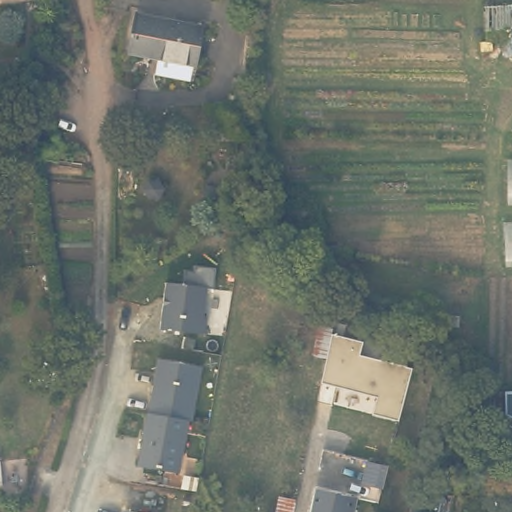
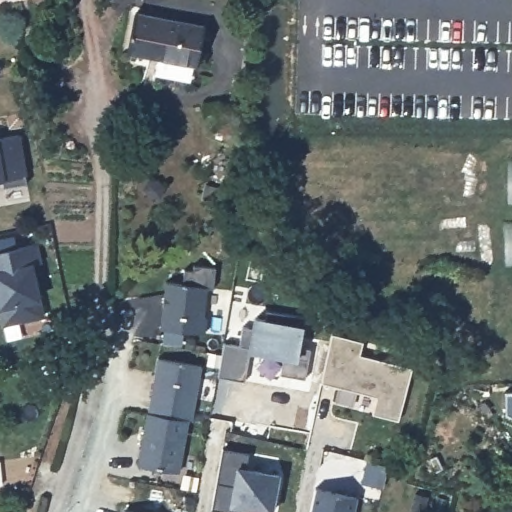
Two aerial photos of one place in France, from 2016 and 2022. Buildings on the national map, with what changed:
unchanged [(203,19),(196,58),(191,57),(187,72),(155,66),(158,51),(156,50),(157,45),(127,40),(135,5),(203,19)]
new [(28,173),(25,174),(27,182),(4,186),(2,179),(0,180),(0,137),(21,132),(28,173)]
unchanged [(508,201),(508,164),(512,164),(512,201),(508,201)]
unchanged [(512,223),(512,267),(502,267),(500,224),(512,223)]
new [(42,300),(46,317),(1,326),(0,320),(0,251),(39,242),(42,263),(36,265),(42,300)]
unchanged [(195,271),(199,267),(217,268),(215,287),(210,287),(207,333),(161,328),(166,282),(187,284),(187,271),(195,271)]
new [(284,355),(250,350),(250,351),(246,380),(217,376),(224,341),(240,343),(242,328),(252,328),(255,315),(266,316),(267,310),(306,316),(305,325),(301,347),(311,347),(306,377),(282,374),(284,355)]
unchanged [(328,360),(313,356),(320,321),(335,324),(332,334),(363,341),(361,354),(412,368),(400,420),(375,414),(379,396),(323,382),(328,360)]
unchanged [(149,409),(158,358),(202,366),(194,417),(189,417),(149,409)]
unchanged [(512,392),(512,424),(507,424),(506,392),(512,392)]
unchanged [(189,417),(180,471),(140,464),(149,409),(189,417)]
new [(244,509),(243,512),(227,512),(212,509),(222,448),(251,453),(247,466),(281,472),(273,512),(261,512),(244,509)]
unchanged [(357,497),(355,512),(312,512),(317,490),(357,497)]
unchanged [(507,490),(512,491),(512,512),(503,512),(507,490)]
unchanged [(429,496),(425,512),(410,512),(416,493),(429,496)]
demolished [(293,509),(292,512),(276,512),(280,494),(296,498),(293,509)]
unchanged [(155,512),(122,512),(123,507),(155,512)]

